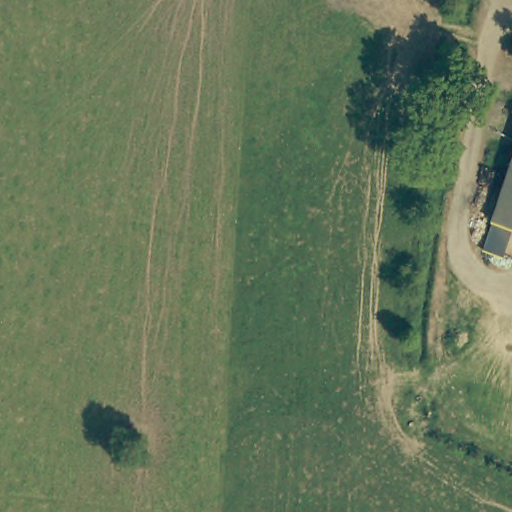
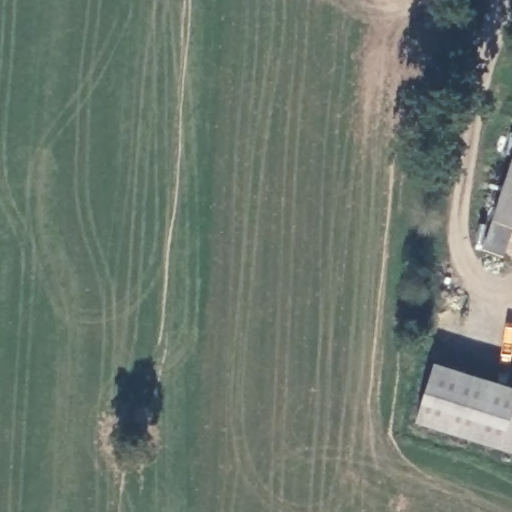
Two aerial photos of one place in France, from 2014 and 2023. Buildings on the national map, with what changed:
unchanged [(478,251),(488,221),(512,151),(512,230),(507,228),(498,257),(478,251)]
new [(512,387),(512,453),(416,423),(435,364),(512,387)]

